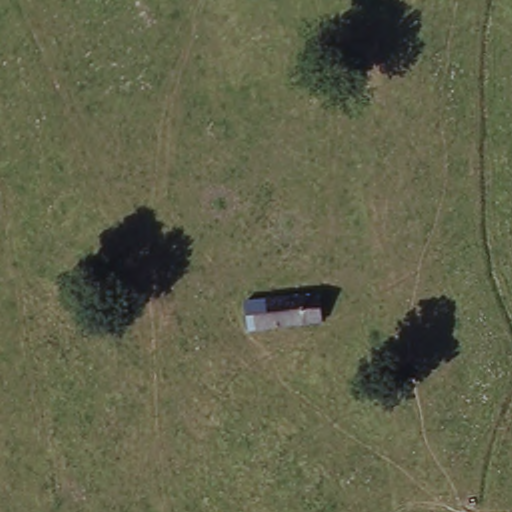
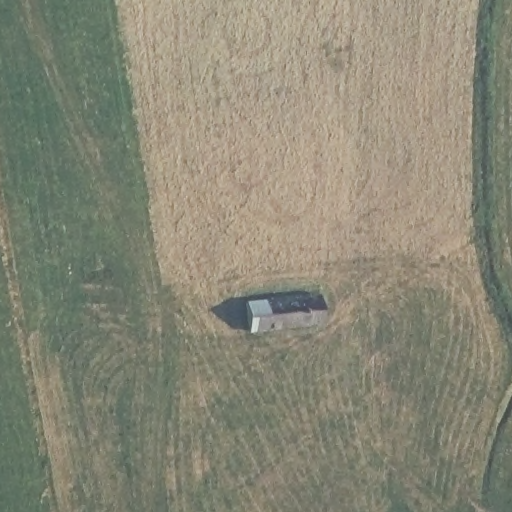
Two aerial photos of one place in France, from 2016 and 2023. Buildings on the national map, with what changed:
unchanged [(317,291),(320,317),(245,323),(241,297),(317,291)]

